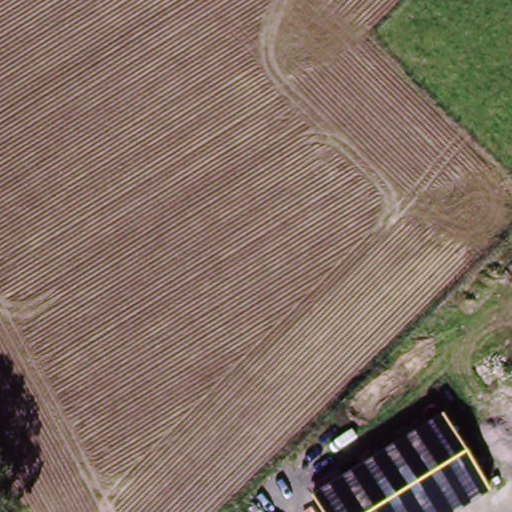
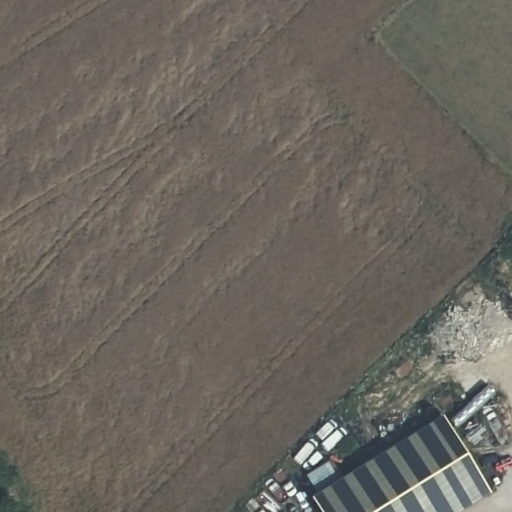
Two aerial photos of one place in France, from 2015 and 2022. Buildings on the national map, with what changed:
unchanged [(321,512),(313,499),(443,419),(490,493),(459,512),(321,512)]

